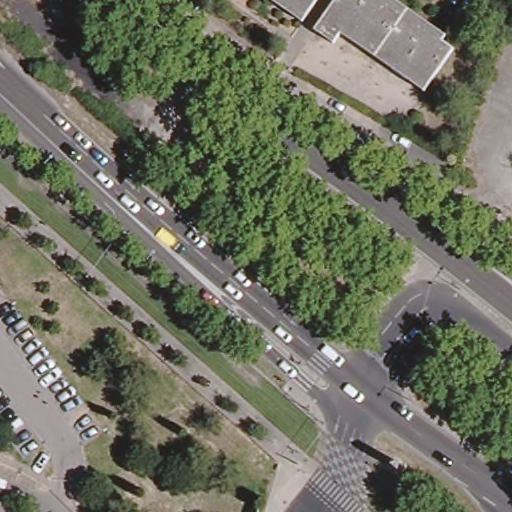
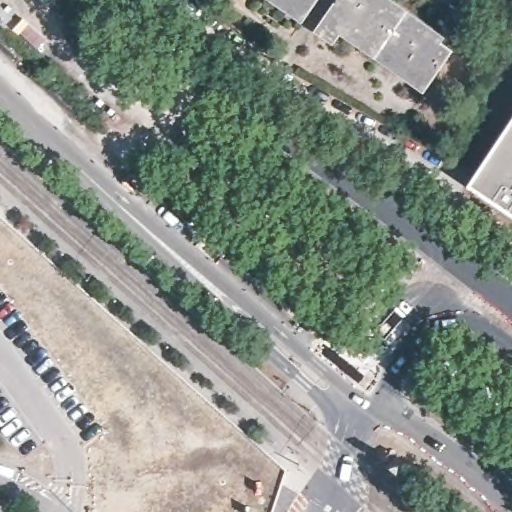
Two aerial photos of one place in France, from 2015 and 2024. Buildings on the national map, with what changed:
unchanged [(265,0),(321,0),(303,26),(265,0)]
unchanged [(428,95),(344,39),(336,48),(318,35),(343,0),(378,0),(456,54),(428,95)]
new [(468,185),(512,118),(512,214),(468,185)]

